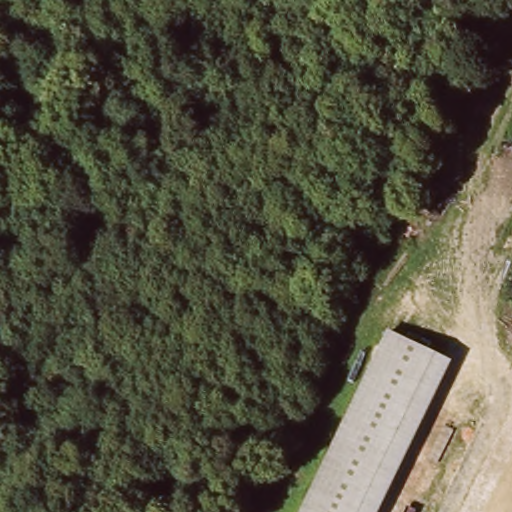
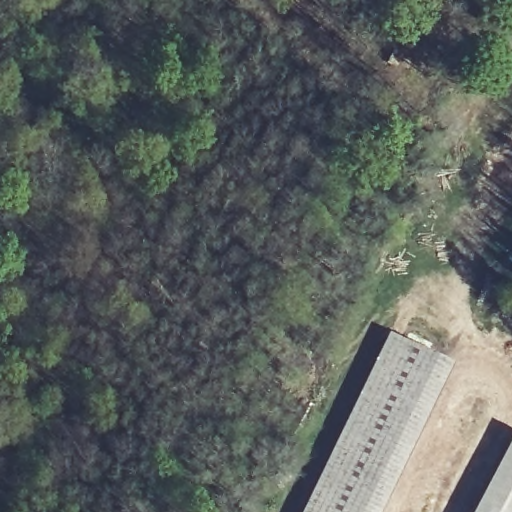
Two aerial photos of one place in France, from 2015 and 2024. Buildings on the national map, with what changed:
unchanged [(387,335),(452,363),(381,512),(303,512),(387,335)]
new [(512,437),(512,512),(473,512),(512,437)]

